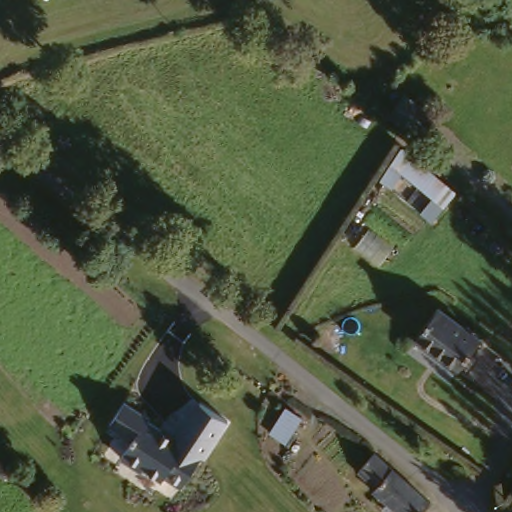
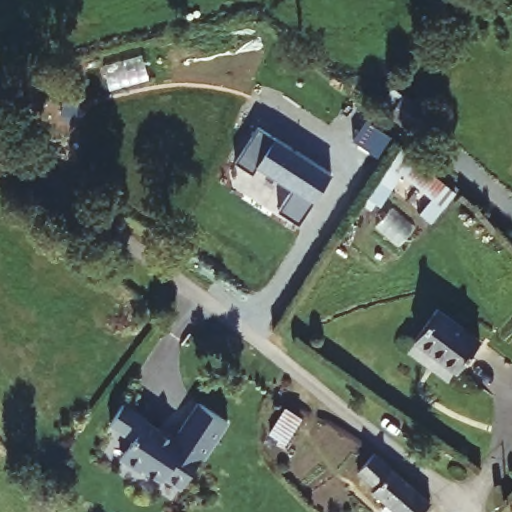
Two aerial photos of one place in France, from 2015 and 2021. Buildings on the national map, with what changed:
unchanged [(426,122),(411,144),(383,122),(399,100),(426,122)]
new [(259,130),(331,174),(301,225),(281,211),(294,189),(258,167),(253,176),(236,165),(259,130)]
unchanged [(406,162),(436,188),(424,201),(395,176),(406,162)]
unchanged [(476,342),(458,371),(414,344),(434,314),(476,342)]
unchanged [(184,487),(165,477),(160,483),(141,471),(121,457),(133,440),(109,423),(124,402),(169,432),(192,401),(229,422),(184,487)]
unchanged [(281,448),(263,437),(279,410),(299,422),(281,448)]
unchanged [(423,505),(416,512),(383,512),(364,496),(367,493),(353,478),(372,458),(423,505)]

